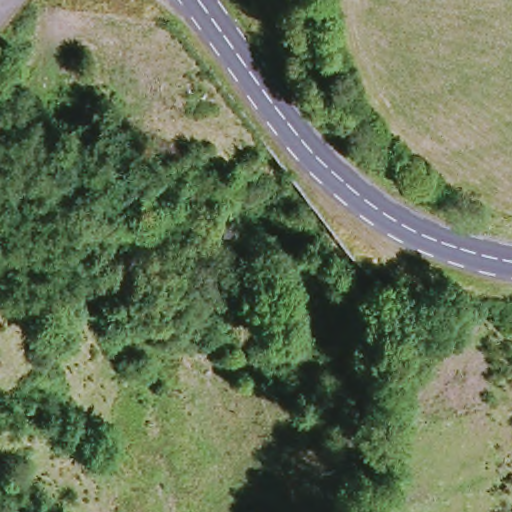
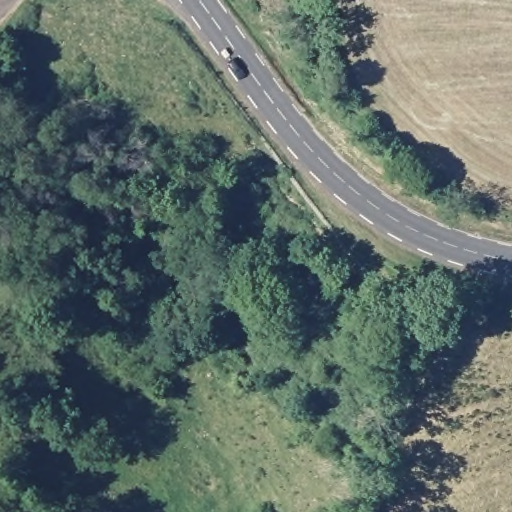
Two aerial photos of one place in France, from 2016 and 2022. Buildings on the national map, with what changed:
[]

